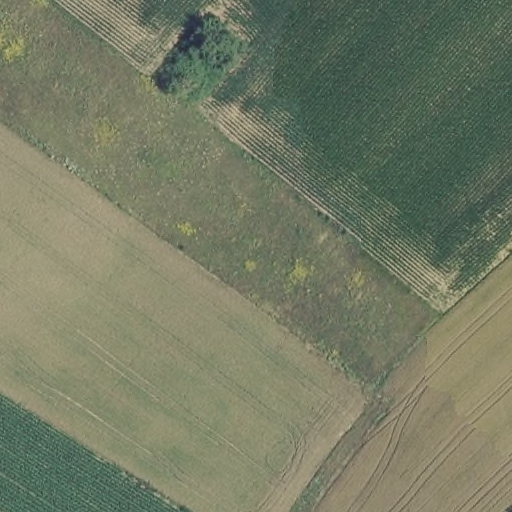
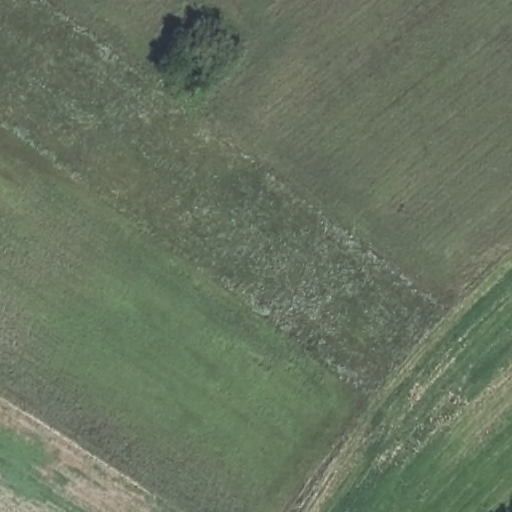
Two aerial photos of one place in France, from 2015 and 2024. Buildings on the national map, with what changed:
[]

